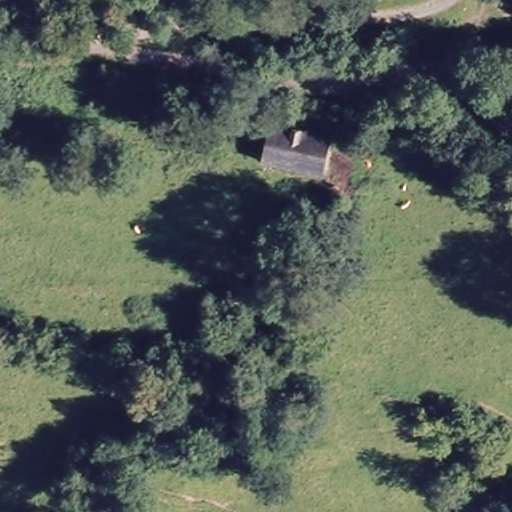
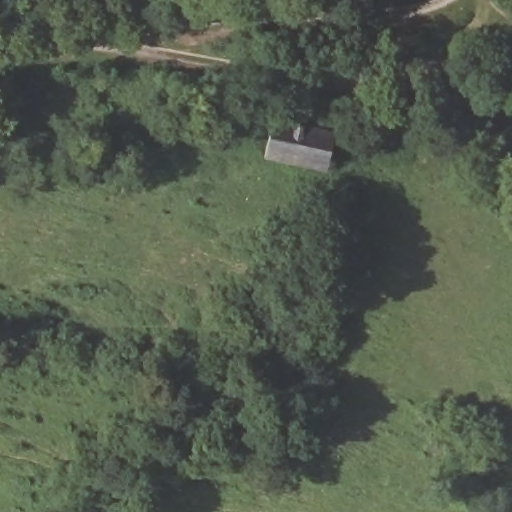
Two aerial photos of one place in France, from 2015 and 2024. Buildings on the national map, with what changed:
unchanged [(335,133),(332,167),(265,162),(270,125),(335,133)]

